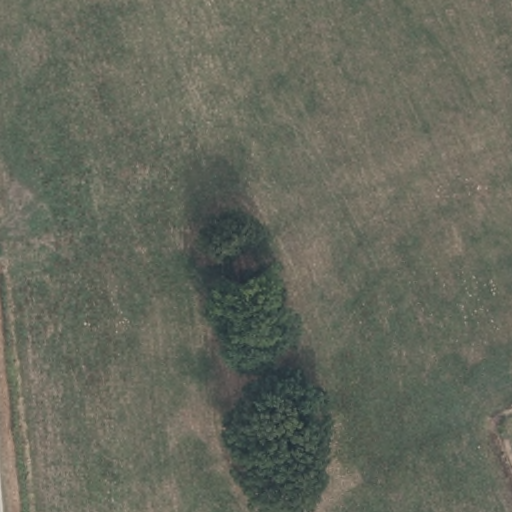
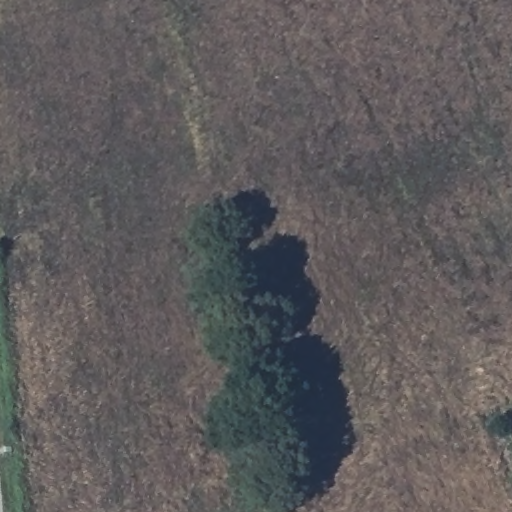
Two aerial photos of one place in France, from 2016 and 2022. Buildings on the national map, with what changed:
[]

